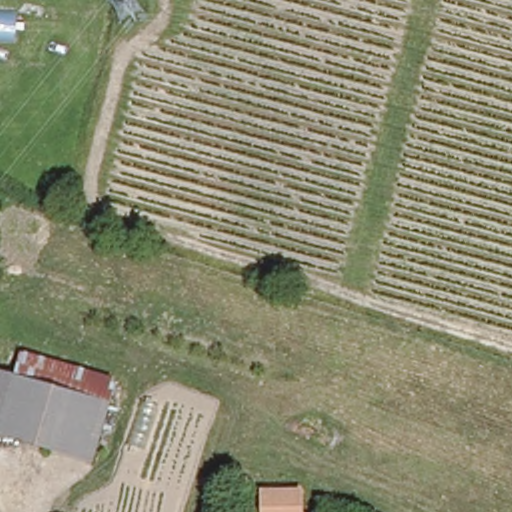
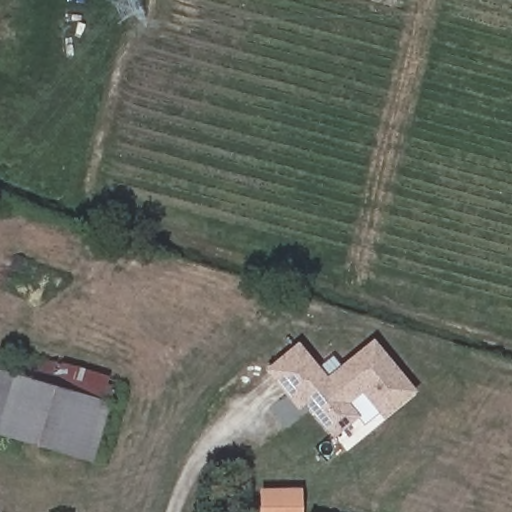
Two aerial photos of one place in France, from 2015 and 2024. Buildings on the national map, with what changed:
new [(373,338),(416,389),(383,418),(362,392),(350,402),(360,415),(333,437),(306,404),(298,411),(263,369),(298,340),(327,376),(373,338)]
unchanged [(15,377),(20,353),(115,375),(92,460),(70,453),(85,395),(15,377)]
unchanged [(15,377),(0,434),(0,373),(15,377)]
unchanged [(85,395),(70,453),(0,434),(15,377),(85,395)]
unchanged [(262,512),(263,488),(302,488),(303,512),(262,512)]

